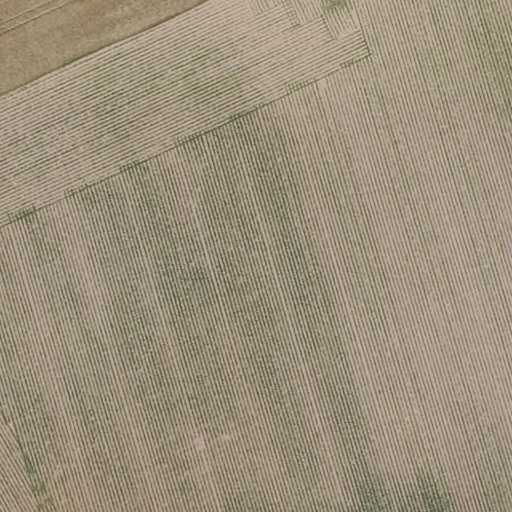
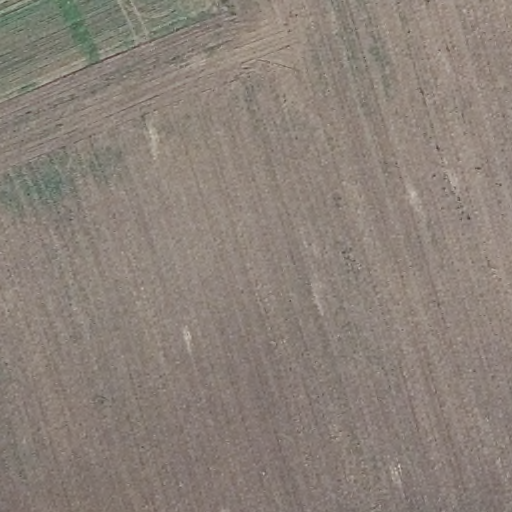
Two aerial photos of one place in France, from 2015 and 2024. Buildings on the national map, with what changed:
[]

